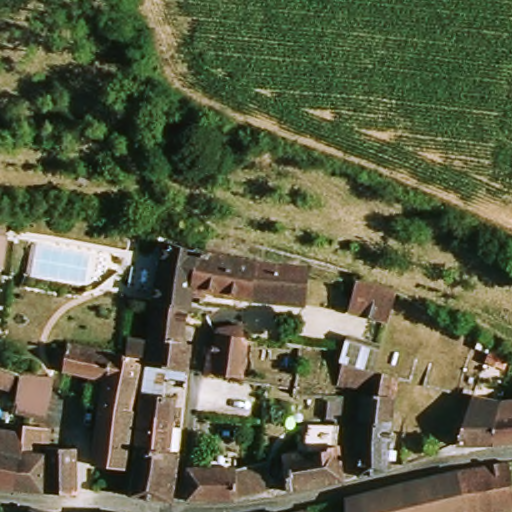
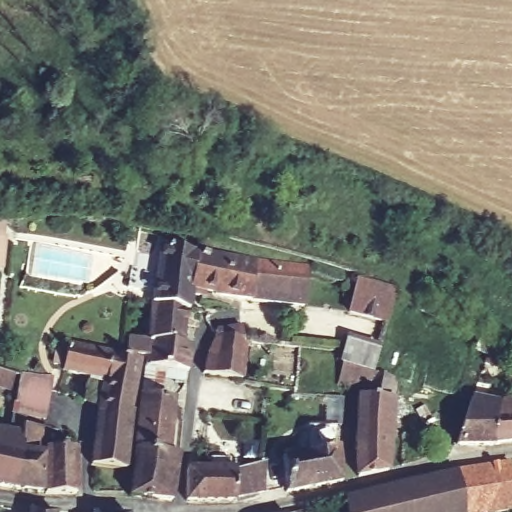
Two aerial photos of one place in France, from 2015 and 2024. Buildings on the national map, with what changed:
unchanged [(187,296),(185,309),(182,308),(147,302),(157,241),(193,248),(187,296)]
unchanged [(208,293),(202,292),(202,297),(187,296),(193,248),(210,252),(270,262),(307,268),(302,307),(210,295),(208,293)]
unchanged [(385,318),(348,307),(357,278),(395,291),(395,295),(385,318)]
unchanged [(182,308),(177,342),(144,337),(147,302),(182,308)]
unchanged [(243,385),(206,379),(218,342),(215,337),(227,333),(242,331),(242,346),(249,347),(243,385)]
unchanged [(143,365),(143,356),(144,337),(177,342),(187,343),(184,370),(143,365)]
unchanged [(354,446),(359,390),(337,387),(342,363),(347,339),(377,348),(370,396),(393,401),(392,434),(388,469),(357,474),(354,446)]
unchanged [(128,408),(96,408),(97,400),(83,397),(87,375),(58,370),(63,342),(119,352),(135,355),(128,408)]
unchanged [(172,397),(170,419),(178,420),(175,452),(133,448),(143,365),(184,370),(183,380),(162,377),(160,397),(172,397)]
unchanged [(20,379),(12,408),(0,405),(0,373),(20,379)]
unchanged [(42,422),(22,419),(10,417),(12,408),(20,379),(49,382),(47,395),(45,405),(42,422)]
unchanged [(452,449),(471,396),(485,398),(498,402),(495,412),(492,443),(452,449)]
unchanged [(131,408),(123,467),(90,462),(96,408),(128,408),(131,408)]
unchanged [(495,412),(512,411),(512,440),(492,443),(495,412)]
unchanged [(283,455),(302,452),(303,423),(335,426),(335,446),(332,447),(340,480),(290,490),(283,455)]
unchanged [(42,447),(40,447),(40,493),(12,490),(18,437),(18,428),(22,428),(53,431),(52,448),(45,447),(42,447)]
unchanged [(18,437),(12,490),(0,487),(0,433),(18,437)]
unchanged [(75,493),(44,493),(45,447),(52,448),(72,448),(75,493)]
unchanged [(170,498),(128,493),(133,448),(175,452),(170,498)]
unchanged [(233,465),(235,465),(255,462),(265,458),(264,490),(235,492),(236,498),(183,500),(183,466),(192,466),(233,465)]
unchanged [(512,510),(501,512),(465,512),(460,470),(512,461),(512,510)]
unchanged [(406,481),(460,470),(465,512),(347,512),(345,497),(406,481)]
unchanged [(298,512),(298,511),(312,507),(314,512),(298,512)]
unchanged [(45,512),(26,512),(26,510),(45,512)]

